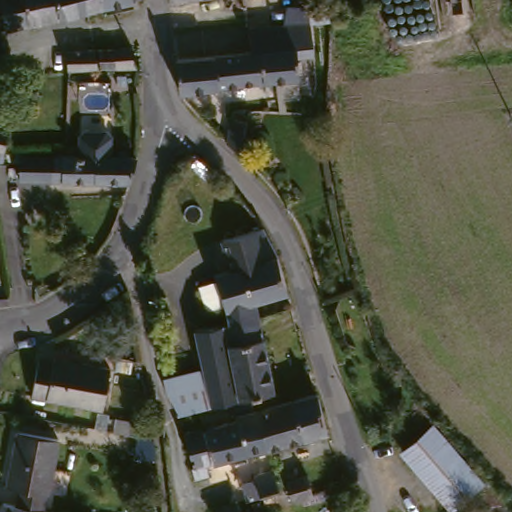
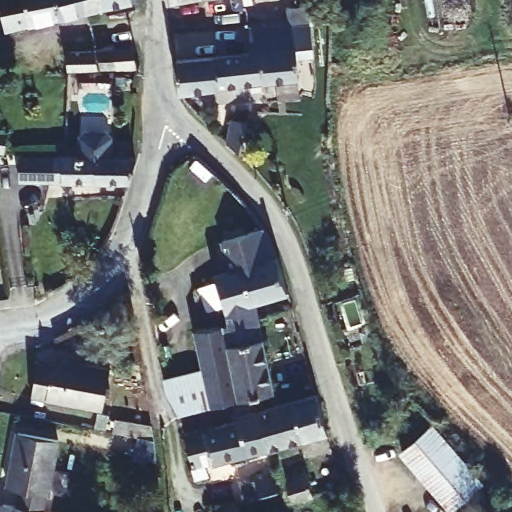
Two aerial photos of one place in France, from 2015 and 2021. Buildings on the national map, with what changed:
unchanged [(55,15),(0,25),(0,23),(0,0),(52,0),(55,15)]
unchanged [(128,1),(98,6),(83,9),(55,15),(52,0),(133,0),(128,1)]
unchanged [(248,29),(250,29),(285,27),(287,11),(308,9),(308,11),(308,15),(309,25),(306,25),(309,63),(293,64),(292,52),(248,56),(246,30),(248,29)]
unchanged [(248,56),(292,52),(293,64),(295,84),(177,93),(175,93),(173,62),(248,56)]
unchanged [(99,74),(69,73),(68,54),(94,54),(99,74)]
unchanged [(103,74),(98,54),(112,55),(130,55),(135,75),(117,74),(103,74)]
unchanged [(227,109),(241,112),(239,143),(225,132),(227,109)]
unchanged [(33,174),(34,149),(66,151),(76,152),(93,153),(94,133),(99,128),(119,130),(123,135),(122,155),(143,157),(146,157),(141,182),(62,176),(33,174)]
unchanged [(274,243),(280,257),(235,269),(227,239),(265,228),(274,243)]
unchanged [(291,291),(258,300),(261,314),(252,316),(233,320),(230,309),(224,290),(219,274),(235,269),(280,257),(291,291)]
unchanged [(280,389),(259,393),(216,402),(207,364),(198,327),(233,320),(252,316),(261,314),(280,389)]
unchanged [(99,402),(28,393),(32,354),(46,356),(46,352),(104,359),(99,402)]
unchanged [(216,402),(204,404),(160,411),(158,372),(207,364),(216,402)]
unchanged [(235,458),(234,453),(210,459),(213,470),(199,474),(188,429),(244,414),(243,412),(263,406),(321,390),(333,428),(272,444),(254,448),(255,453),(267,450),(274,469),(256,474),(250,454),(235,458)]
unchanged [(132,435),(107,430),(111,411),(131,414),(132,435)]
unchanged [(402,445),(428,421),(479,477),(452,501),(402,445)]
unchanged [(35,510),(33,509),(7,505),(10,488),(0,486),(8,434),(46,440),(38,492),(35,510)]
unchanged [(282,467),(280,461),(298,456),(304,475),(285,480),(282,467)]
unchanged [(237,499),(214,507),(207,488),(230,480),(237,499)]
unchanged [(0,512),(0,504),(7,505),(33,509),(33,512),(0,512)]

